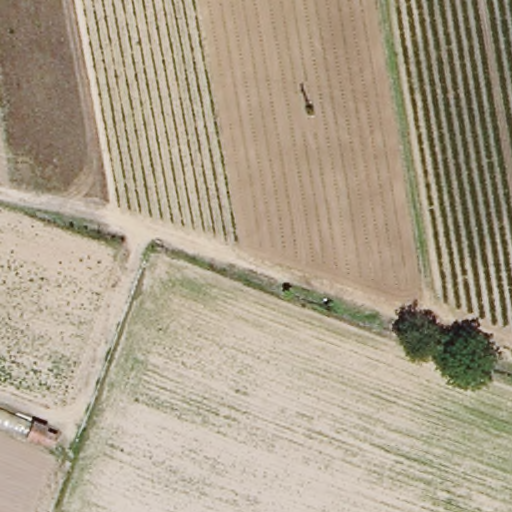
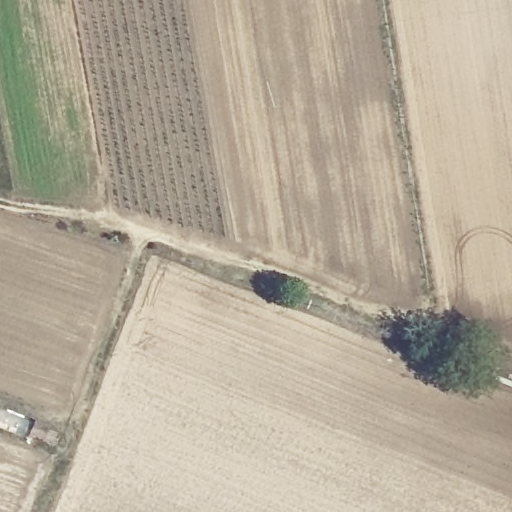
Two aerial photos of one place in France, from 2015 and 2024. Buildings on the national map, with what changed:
unchanged [(46,432),(57,437),(53,447),(28,436),(33,423),(47,430),(46,432)]

